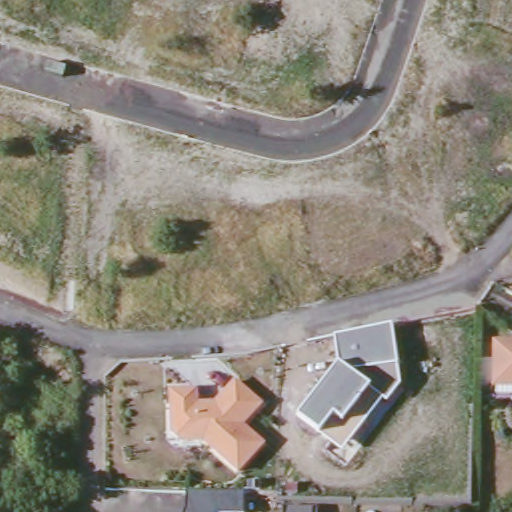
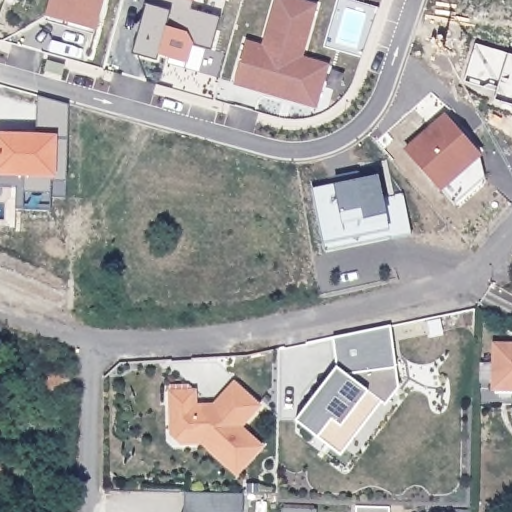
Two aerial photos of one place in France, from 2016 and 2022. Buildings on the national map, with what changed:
new [(51,0),(103,0),(96,28),(94,34),(46,20),(47,15),(51,0)]
new [(146,5),(147,0),(195,0),(194,1),(190,10),(219,17),(212,50),(194,45),(189,63),(159,53),(157,60),(133,54),(146,5)]
new [(281,96),(235,83),(246,41),(264,46),(276,0),(298,0),(316,5),(302,57),(328,64),(321,91),(316,106),(281,96)]
new [(66,199),(52,199),(51,211),(16,210),(16,189),(0,188),(0,132),(37,132),(38,96),(68,105),(66,199)]
new [(445,115),(479,154),(485,178),(455,205),(406,150),(445,115)]
new [(328,240),(316,185),(379,171),(384,193),(404,189),(412,230),(392,234),(392,232),(329,246),(328,240)]
unchanged [(321,433),(318,437),(296,420),(337,367),(333,337),(391,326),(396,365),(398,385),(386,404),(382,400),(340,454),(321,433)]
unchanged [(494,337),(512,337),(512,384),(511,384),(494,385),(494,378),(494,337)]
unchanged [(246,428),(269,448),(239,475),(204,443),(186,445),(172,432),(170,392),(199,390),(199,405),(217,405),(236,382),(265,406),(246,428)]
unchanged [(188,494),(244,495),(243,512),(186,512),(187,510),(188,494)]
new [(316,507),(316,512),(280,512),(281,506),(316,507)]
new [(390,507),(390,512),(356,512),(356,507),(390,507)]

